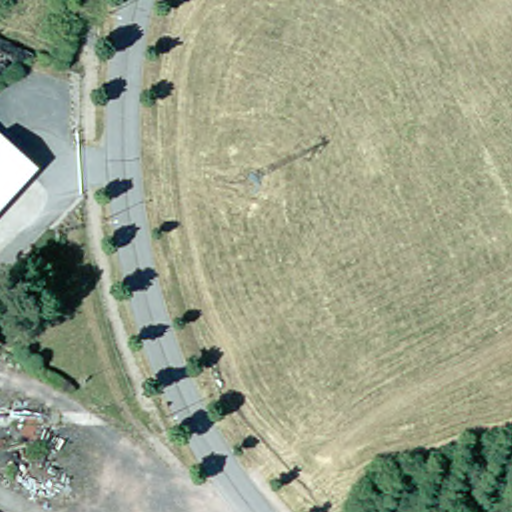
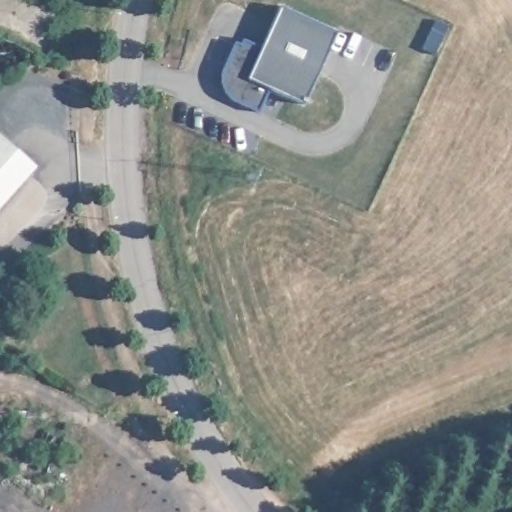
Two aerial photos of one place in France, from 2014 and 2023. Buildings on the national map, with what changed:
new [(261,49),(280,6),(337,33),(305,104),(270,90),(260,112),(230,100),(225,95),(223,89),(222,81),(222,71),(237,40),(261,49)]
unchanged [(35,166),(29,175),(0,207),(0,135),(27,160),(35,166)]

